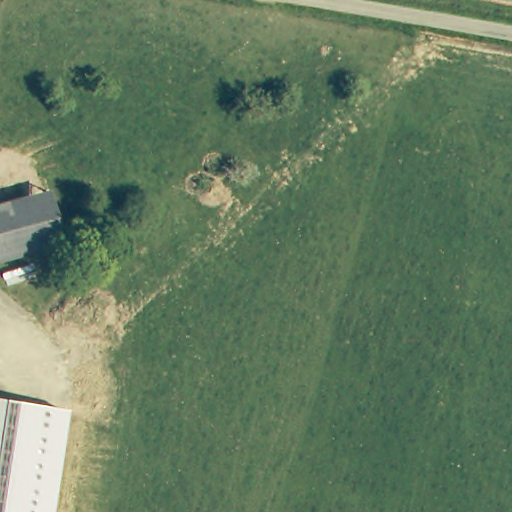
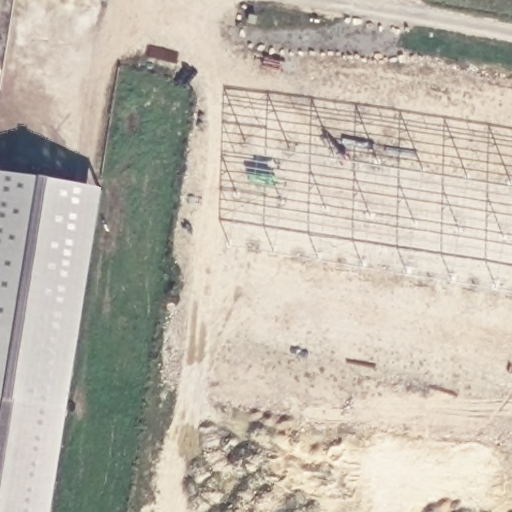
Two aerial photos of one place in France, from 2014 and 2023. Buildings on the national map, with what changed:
new [(0,172),(101,186),(67,409),(0,399),(0,172)]
unchanged [(0,512),(0,399),(67,409),(51,512),(0,512)]

